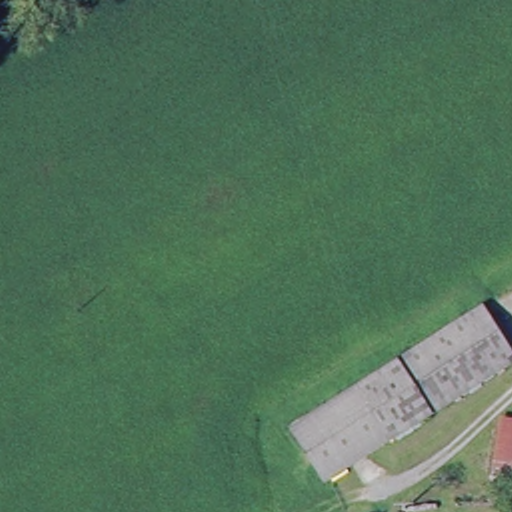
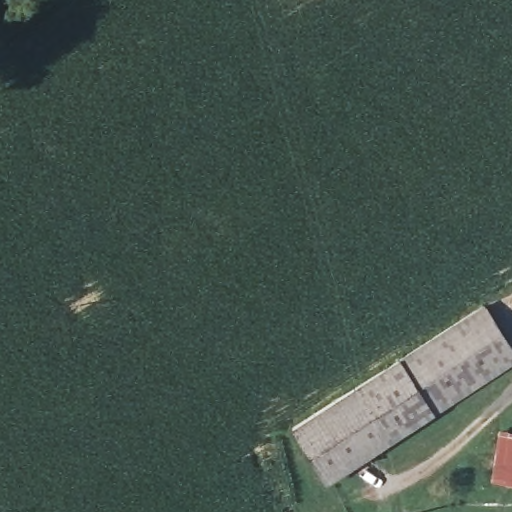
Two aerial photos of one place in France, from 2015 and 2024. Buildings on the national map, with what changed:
unchanged [(512,355),(512,362),(465,396),(431,342),(482,310),(512,355)]
unchanged [(465,396),(325,485),(290,431),(431,342),(465,396)]
unchanged [(505,419),(512,420),(512,480),(495,476),(505,419)]

